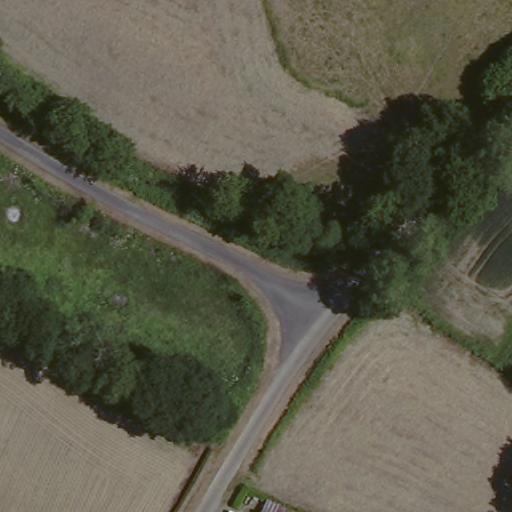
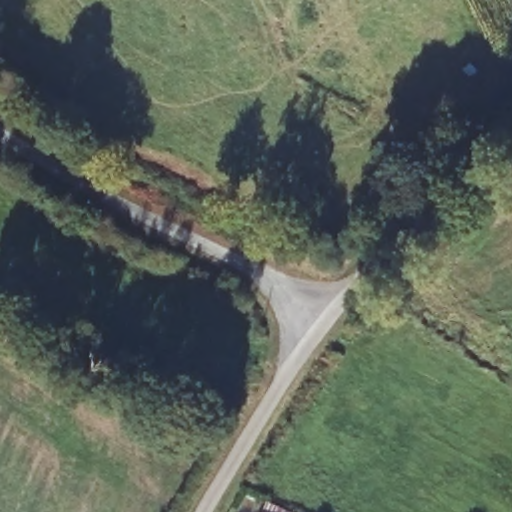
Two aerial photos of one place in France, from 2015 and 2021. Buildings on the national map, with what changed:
unchanged [(277,500),(305,512),(272,512),(277,500)]

